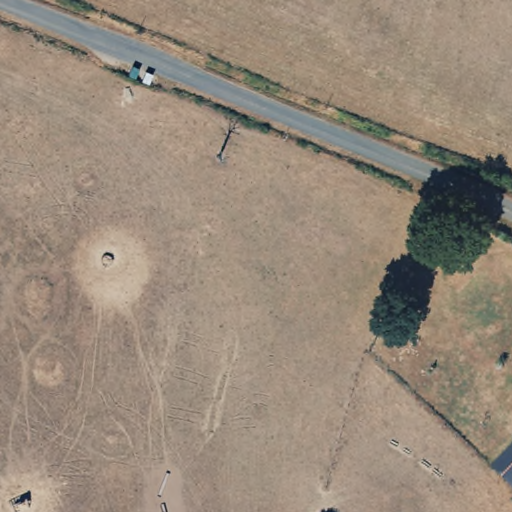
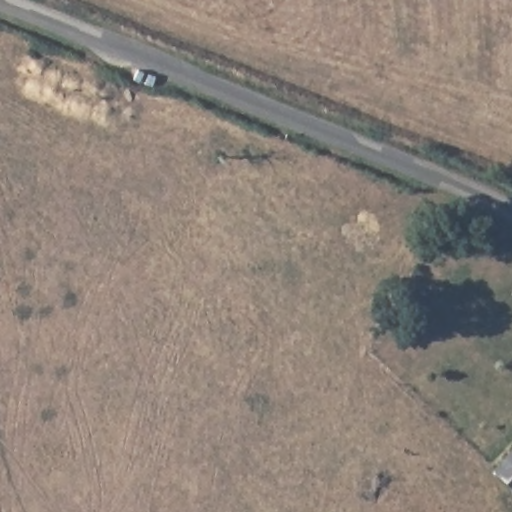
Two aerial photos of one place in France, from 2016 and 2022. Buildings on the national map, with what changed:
unchanged [(512,490),(511,491),(487,467),(512,444),(512,490)]

